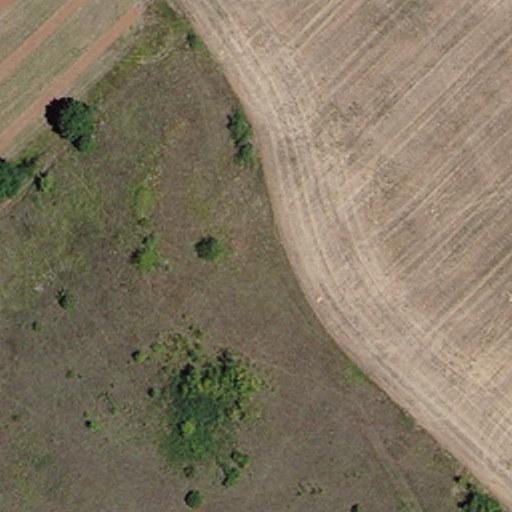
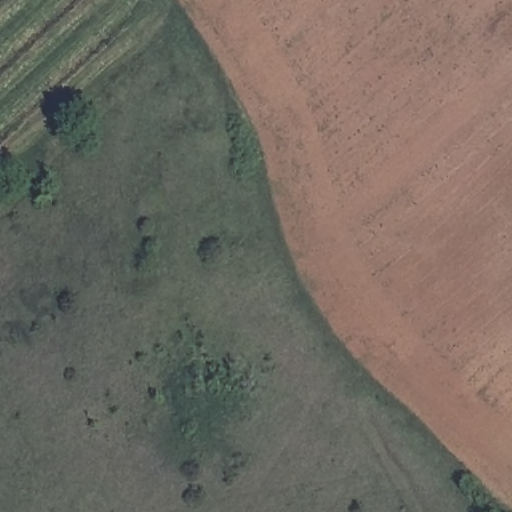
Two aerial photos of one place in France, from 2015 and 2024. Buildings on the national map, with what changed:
[]

